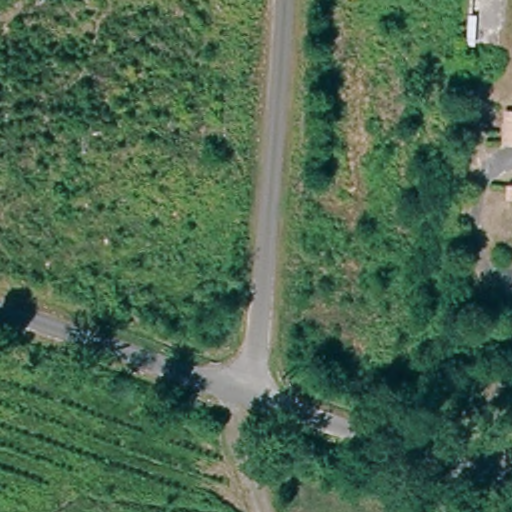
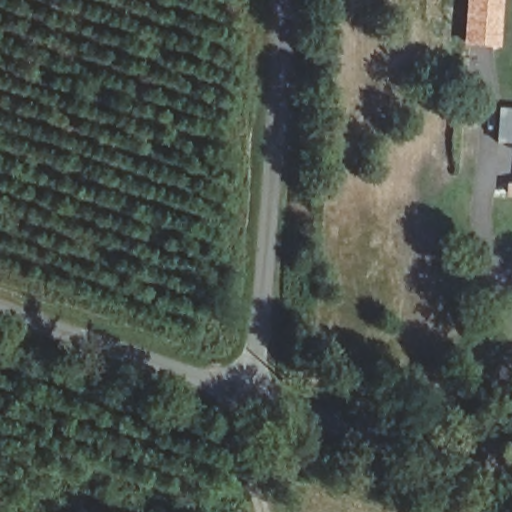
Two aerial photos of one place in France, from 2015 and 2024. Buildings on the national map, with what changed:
new [(504,0),(501,50),(462,46),(465,0),(504,0)]
unchanged [(497,140),(499,107),(512,108),(512,140),(497,140)]

